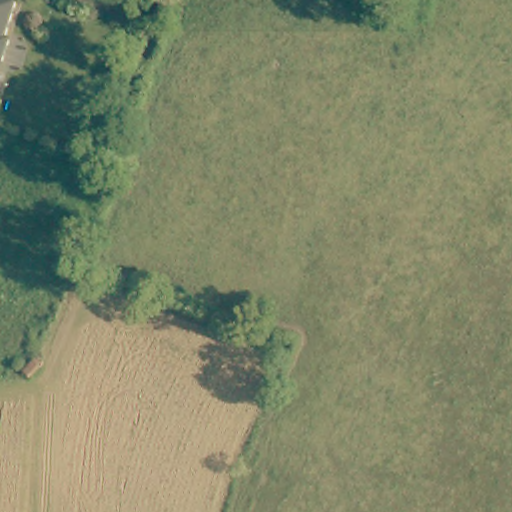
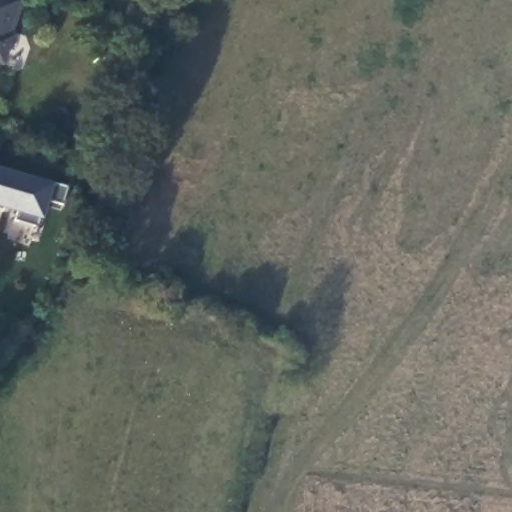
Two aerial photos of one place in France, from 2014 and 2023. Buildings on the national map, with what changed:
unchanged [(10,35),(14,42),(5,68),(0,67),(0,0),(21,0),(10,35)]
new [(50,183),(68,189),(63,205),(48,201),(42,221),(0,208),(0,168),(50,183)]

